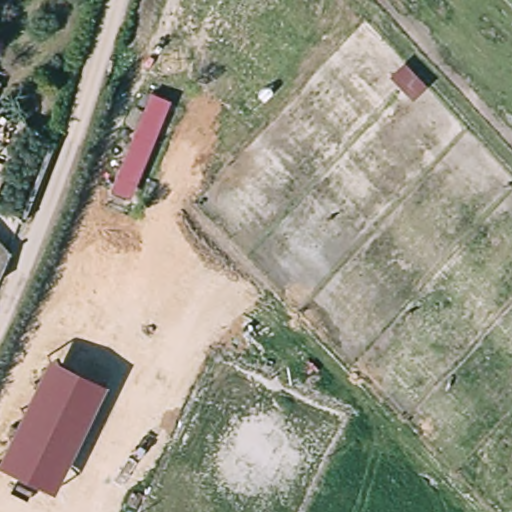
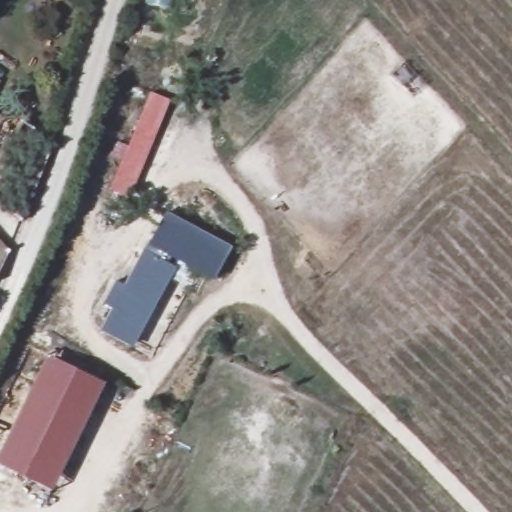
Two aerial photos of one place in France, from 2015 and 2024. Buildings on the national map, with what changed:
unchanged [(171,101),(132,198),(111,190),(151,92),(171,101)]
new [(149,246),(166,214),(230,248),(214,280),(149,246)]
new [(100,332),(112,309),(103,304),(115,282),(124,286),(143,249),(175,267),(133,348),(100,332)]
unchanged [(0,265),(0,252),(4,256),(0,265)]
unchanged [(52,490),(0,464),(0,452),(48,355),(106,383),(52,490)]

